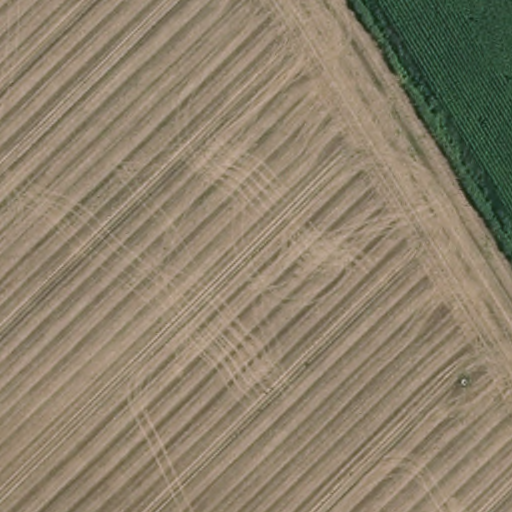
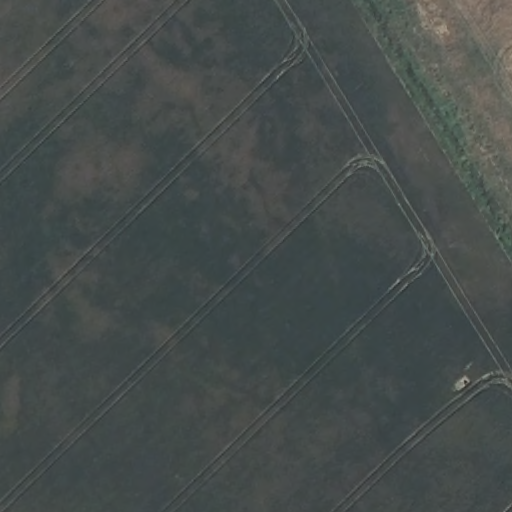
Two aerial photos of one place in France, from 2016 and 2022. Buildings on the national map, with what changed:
[]

